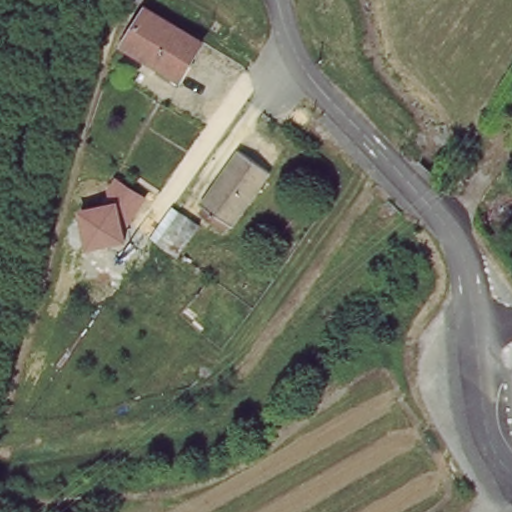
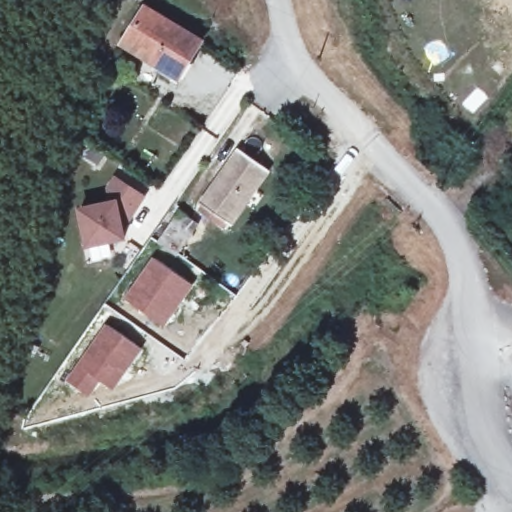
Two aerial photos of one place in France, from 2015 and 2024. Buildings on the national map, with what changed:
unchanged [(175,76),(123,45),(146,5),(204,40),(188,66),(180,79),(175,76)]
unchanged [(265,173),(226,228),(197,208),(235,151),(265,173)]
unchanged [(78,210),(108,202),(119,180),(148,197),(127,231),(129,242),(87,250),(78,210)]
unchanged [(178,260),(151,242),(174,209),(201,228),(178,260)]
new [(152,255),(194,285),(164,327),(122,297),(152,255)]
new [(105,321),(143,348),(113,391),(100,382),(90,397),(65,380),(105,321)]

